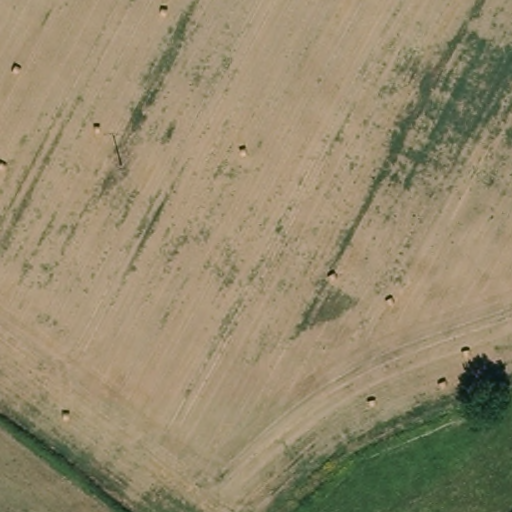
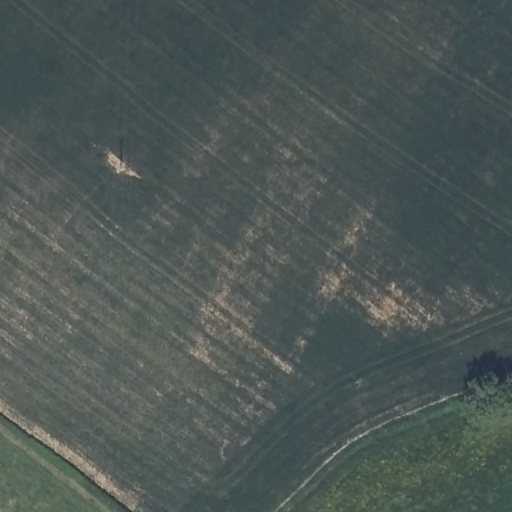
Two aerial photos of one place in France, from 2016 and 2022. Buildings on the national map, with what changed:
[]

